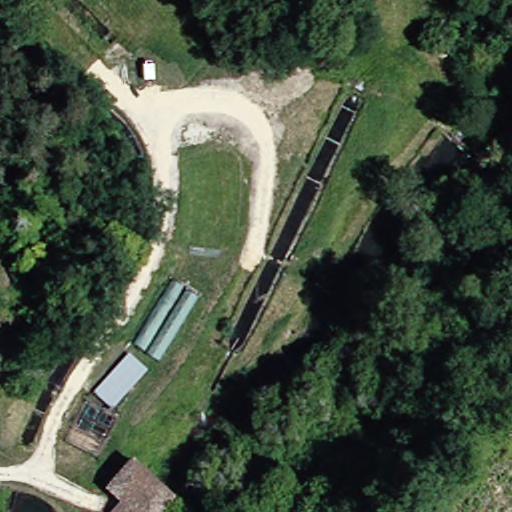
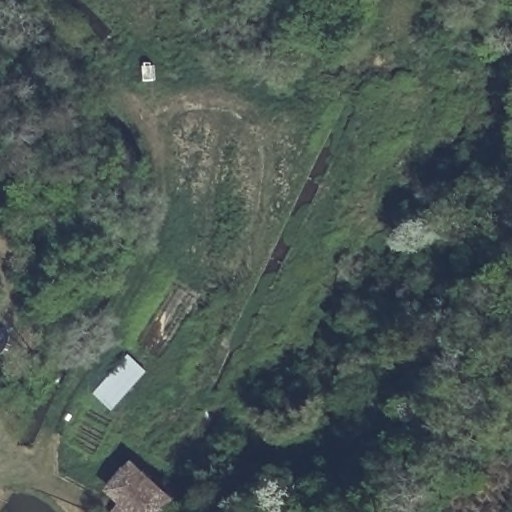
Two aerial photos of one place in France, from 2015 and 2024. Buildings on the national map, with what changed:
unchanged [(105,405),(88,390),(121,351),(138,367),(105,405)]
unchanged [(149,512),(98,512),(112,499),(98,486),(124,456),(165,493),(149,512)]

